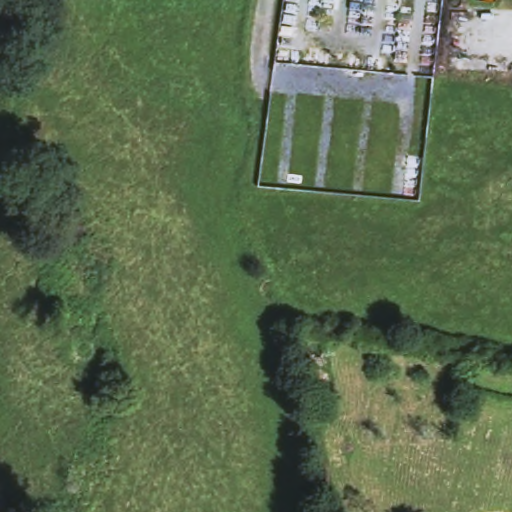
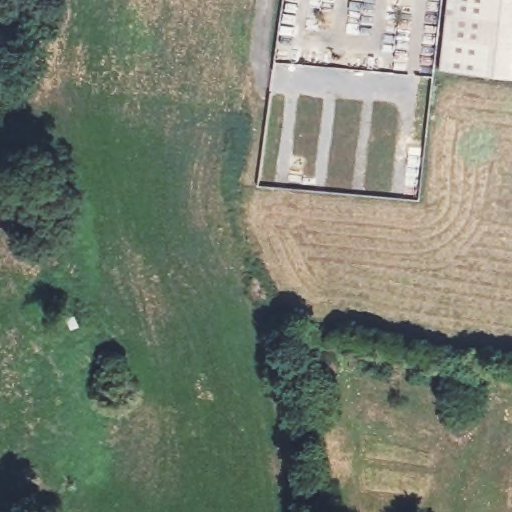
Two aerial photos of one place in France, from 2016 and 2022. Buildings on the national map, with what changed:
new [(451,0),(512,0),(512,85),(442,76),(451,0)]

